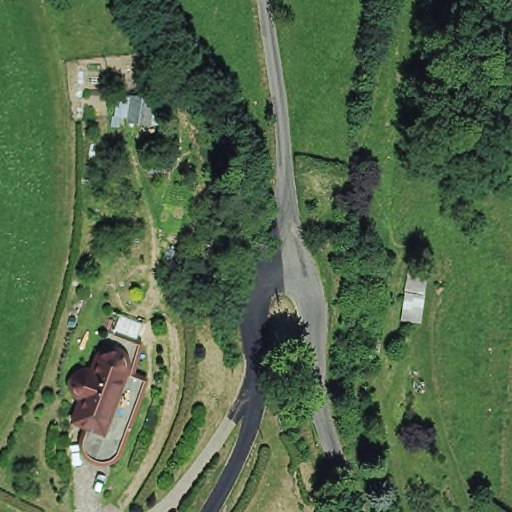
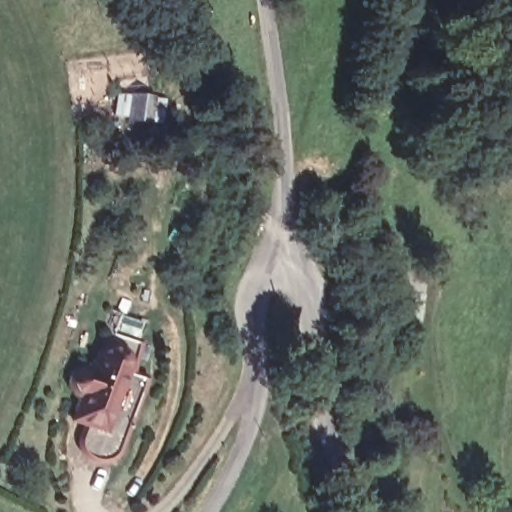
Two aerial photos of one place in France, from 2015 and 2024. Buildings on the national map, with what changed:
unchanged [(129,90),(112,107),(97,91),(115,75),(129,90)]
unchanged [(95,349),(100,336),(130,348),(124,362),(118,378),(116,377),(88,367),(95,349)]
unchanged [(86,366),(88,367),(116,377),(93,436),(77,429),(63,424),(86,366)]
unchanged [(133,384),(102,461),(97,464),(90,467),(83,467),(77,466),(72,461),(70,454),(70,449),(72,443),(77,429),(93,436),(116,377),(118,378),(133,384)]

